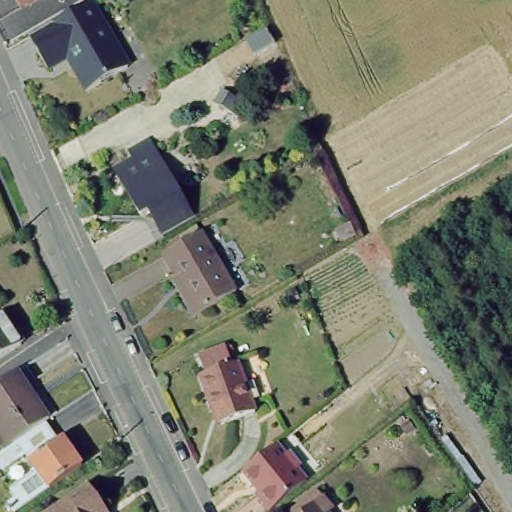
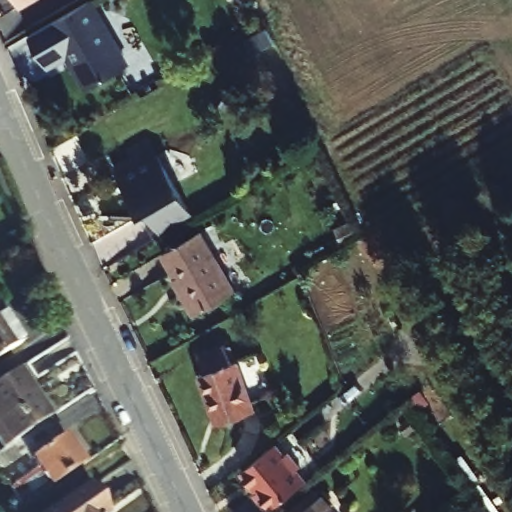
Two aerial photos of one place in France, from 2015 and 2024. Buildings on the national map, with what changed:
unchanged [(32,0),(20,6),(18,0),(32,0)]
unchanged [(96,0),(130,64),(84,89),(65,59),(47,68),(29,36),(94,0),(96,0)]
unchanged [(197,214),(165,233),(152,211),(145,215),(124,177),(117,165),(132,156),(129,149),(151,136),(162,155),(197,214)]
unchanged [(232,292),(189,317),(172,288),(177,285),(159,254),(200,232),(232,292)]
unchanged [(25,341),(0,357),(0,315),(6,311),(25,341)]
unchanged [(234,371),(240,369),(258,427),(235,434),(228,417),(213,421),(200,382),(206,380),(202,367),(230,359),(234,371)]
unchanged [(40,466),(33,457),(20,437),(13,441),(0,421),(0,382),(21,369),(52,415),(49,418),(62,437),(67,434),(85,462),(69,473),(52,484),(17,509),(10,498),(19,492),(14,483),(40,466)]
unchanged [(268,505),(238,471),(275,442),(304,477),(268,505)]
unchanged [(99,503),(94,507),(97,512),(46,512),(86,485),(99,503)]
unchanged [(337,509),(334,512),(301,512),(325,494),(337,509)]

